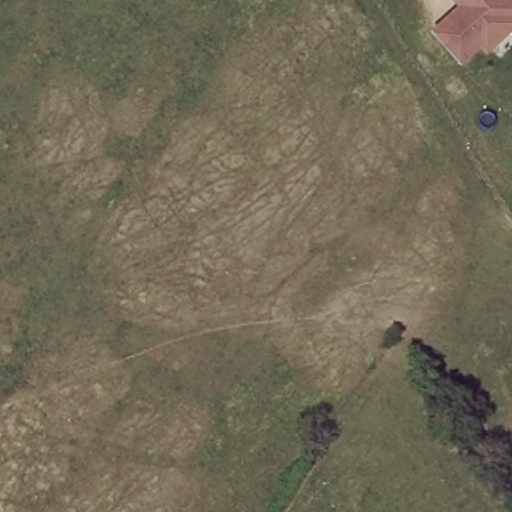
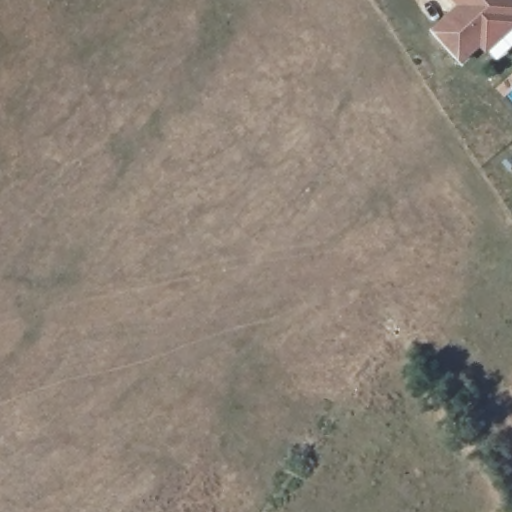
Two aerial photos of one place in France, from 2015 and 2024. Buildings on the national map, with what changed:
unchanged [(482,49),(462,66),(431,31),(458,7),(451,0),(512,0),(512,29),(487,54),(482,49)]

